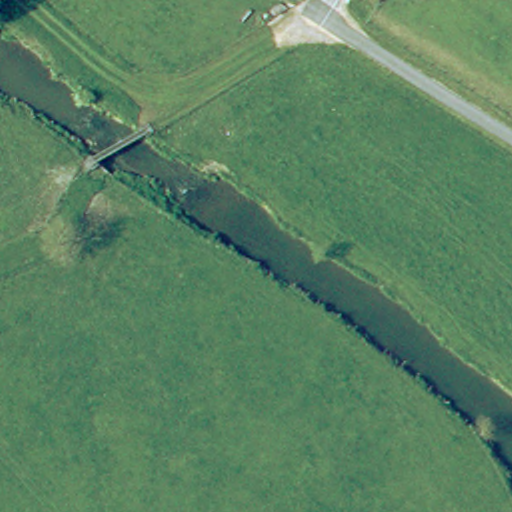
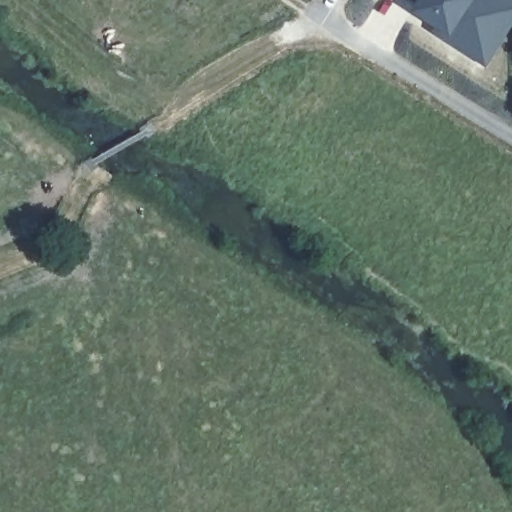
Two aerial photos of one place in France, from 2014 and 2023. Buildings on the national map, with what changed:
new [(410,12),(417,1),(414,0),(512,0),(512,22),(483,66),(430,31),(430,24),(410,12)]

